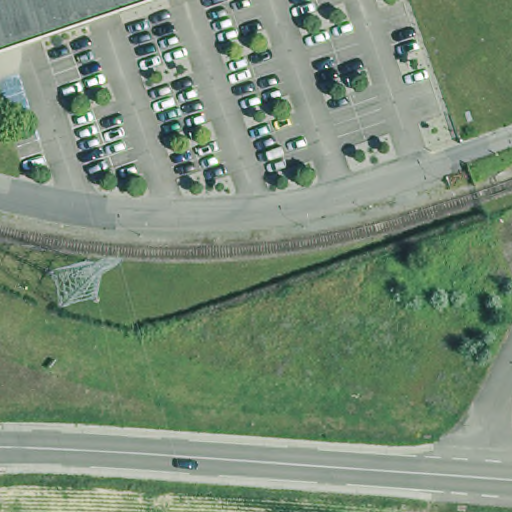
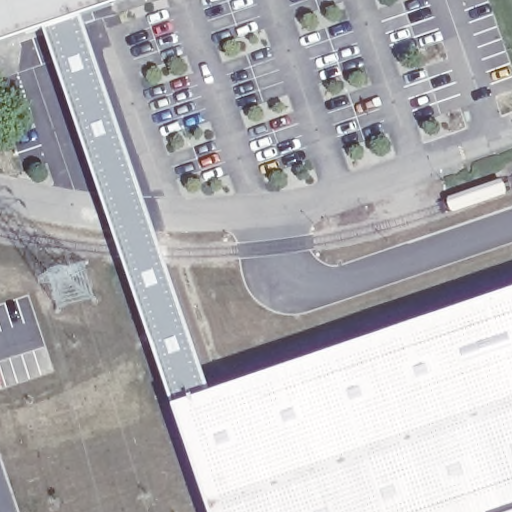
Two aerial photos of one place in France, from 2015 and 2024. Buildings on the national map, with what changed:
unchanged [(130,0),(3,44),(0,45),(0,0),(130,0)]
new [(512,264),(512,512),(207,512),(164,378),(512,264)]

